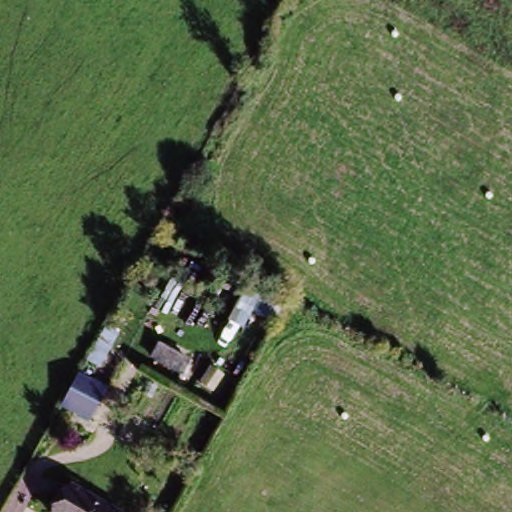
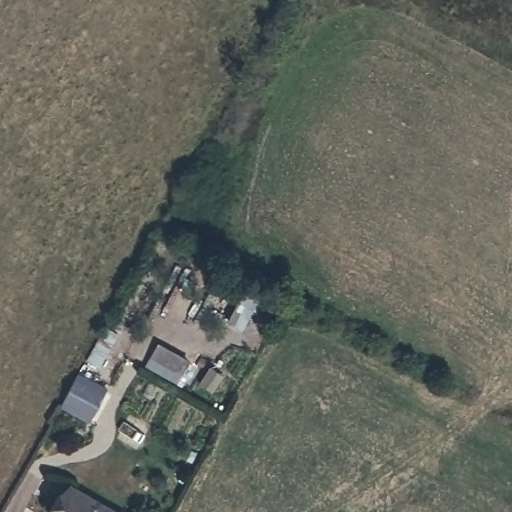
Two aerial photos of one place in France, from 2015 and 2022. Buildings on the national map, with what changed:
unchanged [(279,313),(267,335),(242,321),(255,300),(279,313)]
unchanged [(152,355),(161,342),(191,359),(182,373),(152,355)]
unchanged [(80,385),(79,385),(83,378),(100,348),(114,345),(92,381),(80,385)]
unchanged [(95,423),(64,417),(67,410),(81,385),(82,385),(110,391),(95,423)]
unchanged [(120,506),(116,512),(49,512),(49,511),(67,477),(120,506)]

